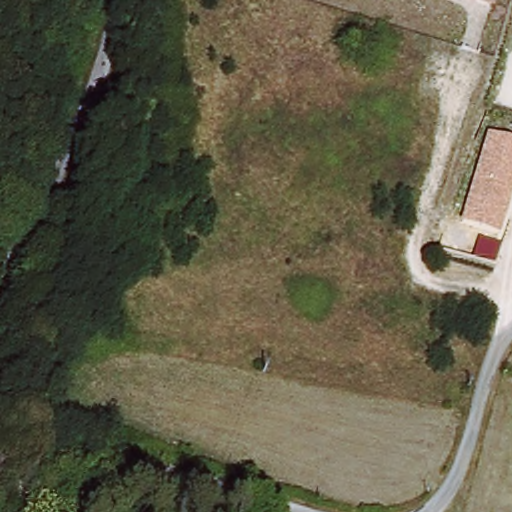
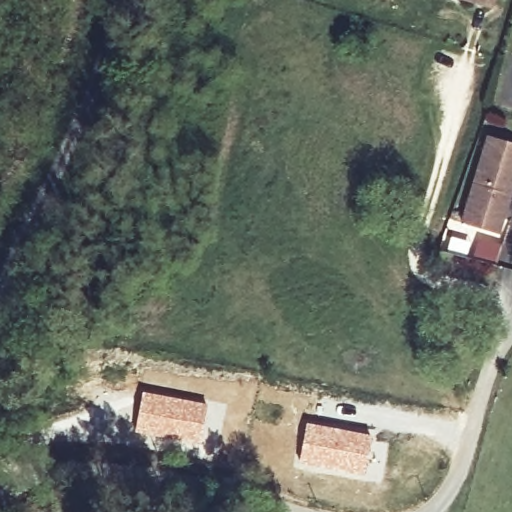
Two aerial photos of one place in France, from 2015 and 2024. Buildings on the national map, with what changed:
unchanged [(392,0),(393,0),(393,1),(392,0)]
unchanged [(477,0),(493,0),(491,5),(477,0)]
unchanged [(512,142),(512,193),(500,233),(460,222),(487,134),(512,142)]
new [(141,390),(208,403),(203,453),(133,433),(141,390)]
new [(305,421),(373,436),(365,477),(297,463),(305,421)]

